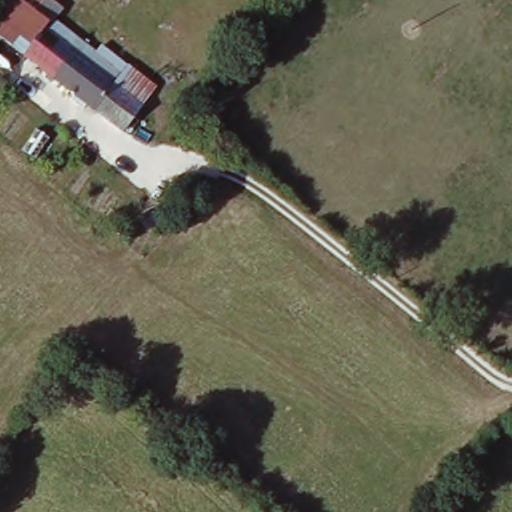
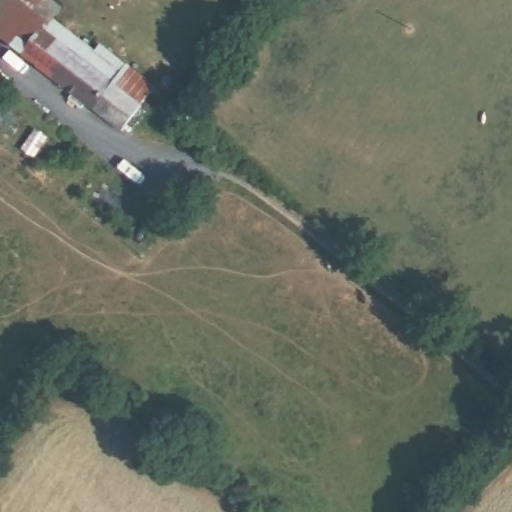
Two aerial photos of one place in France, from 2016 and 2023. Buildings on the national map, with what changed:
unchanged [(3,0),(52,0),(47,8),(59,17),(42,38),(0,5),(0,4),(3,0)]
unchanged [(25,58),(11,47),(0,37),(0,5),(42,38),(25,58)]
unchanged [(152,98),(138,114),(120,135),(25,58),(42,38),(53,45),(59,39),(70,48),(74,44),(118,79),(122,74),(152,98)]
unchanged [(37,131),(51,141),(37,163),(22,152),(37,131)]

